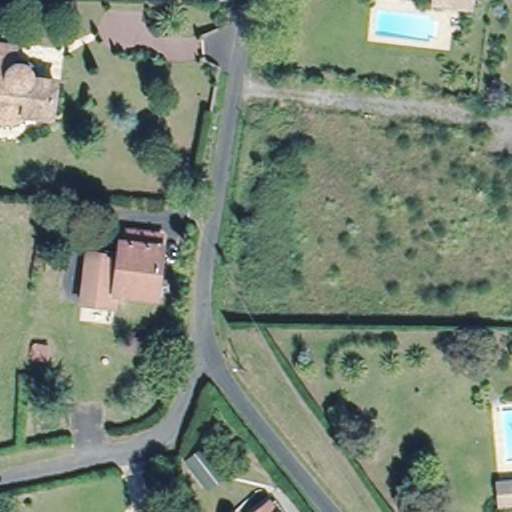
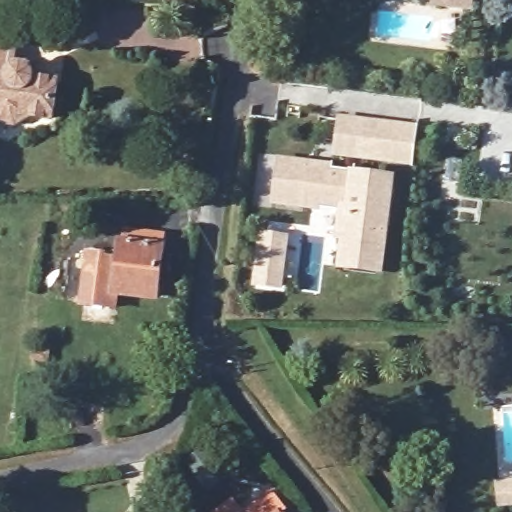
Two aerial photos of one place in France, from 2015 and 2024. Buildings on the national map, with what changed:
unchanged [(441,4),(442,0),(475,0),(475,7),(441,4)]
unchanged [(19,46),(16,67),(20,65),(22,64),(25,64),(26,64),(29,65),(30,67),(33,74),(35,77),(60,82),(54,119),(31,115),(18,122),(4,120),(0,116),(0,43),(19,46)]
new [(340,119),(380,124),(376,158),(336,154),(340,119)]
new [(380,124),(423,129),(419,163),(376,158),(380,124)]
new [(336,270),(340,246),(334,244),(340,207),(322,206),(321,210),(270,202),(277,155),(331,161),(331,168),(351,171),(395,176),(383,276),(336,270)]
unchanged [(122,261),(125,236),(163,239),(155,297),(117,294),(115,307),(85,303),(90,258),(122,261)]
new [(262,236),(285,239),(284,248),(280,287),(256,283),(261,245),(262,236)]
new [(185,461),(202,447),(225,476),(207,490),(185,461)]
unchanged [(512,508),(498,508),(497,484),(512,484),(512,508)]
new [(279,498),(261,512),(245,512),(271,489),(279,498)]
new [(245,512),(215,512),(233,497),(245,512)]
unchanged [(288,509),(285,512),(261,512),(279,498),(288,509)]

